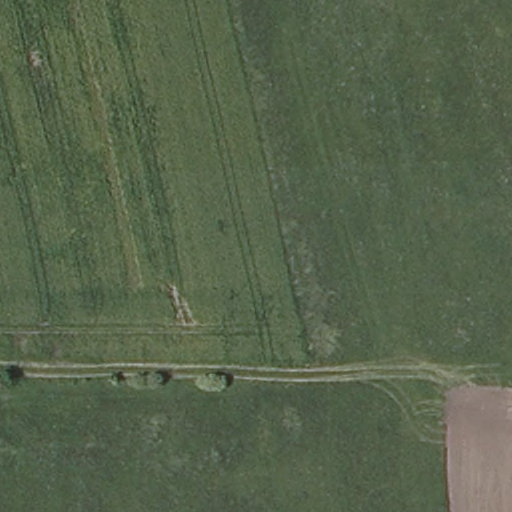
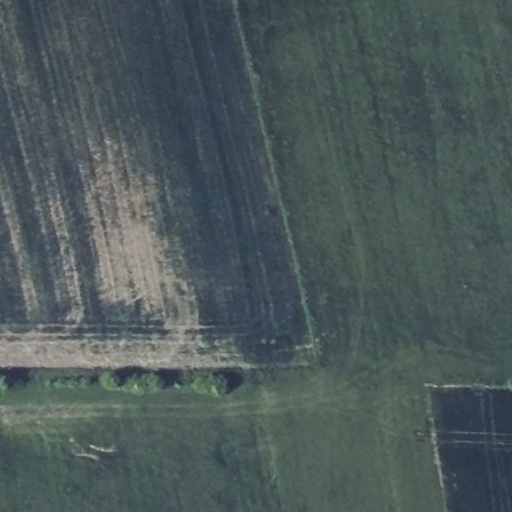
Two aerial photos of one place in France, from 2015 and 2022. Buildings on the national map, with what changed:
[]

